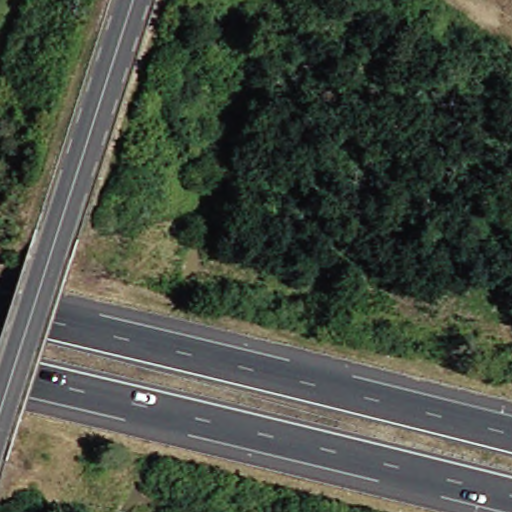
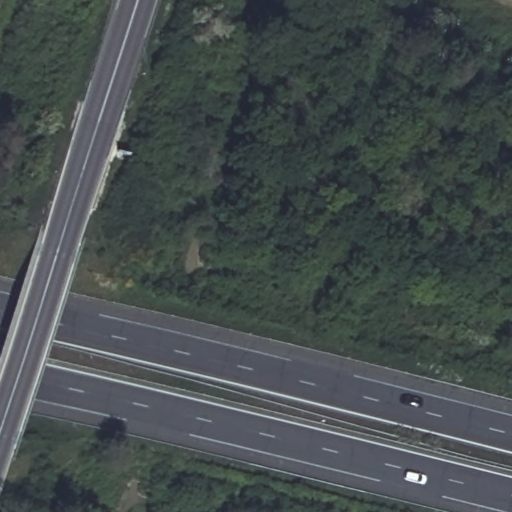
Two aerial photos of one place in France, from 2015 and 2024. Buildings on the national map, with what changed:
[]

